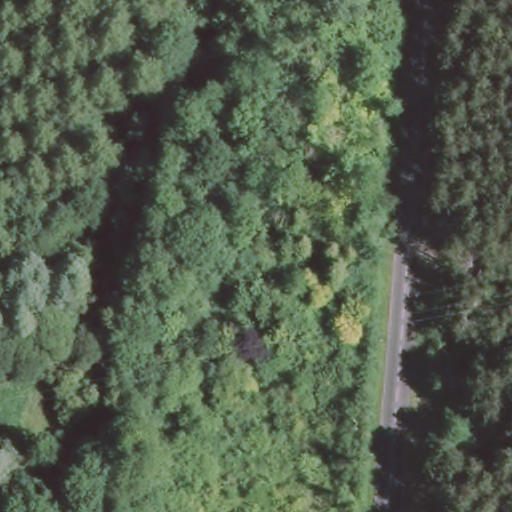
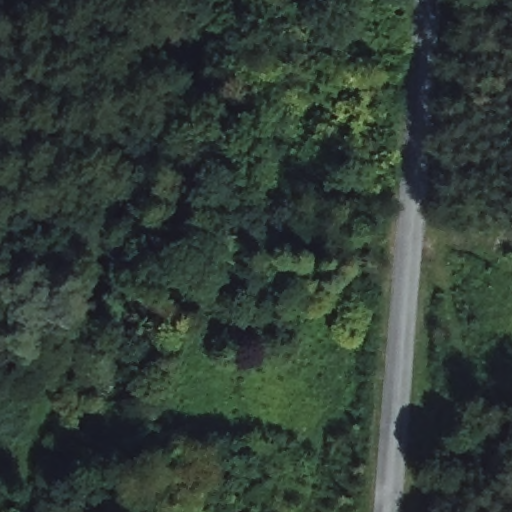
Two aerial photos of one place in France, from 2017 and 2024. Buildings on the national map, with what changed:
unchanged [(204,273),(235,265),(241,285),(208,292),(204,273)]

